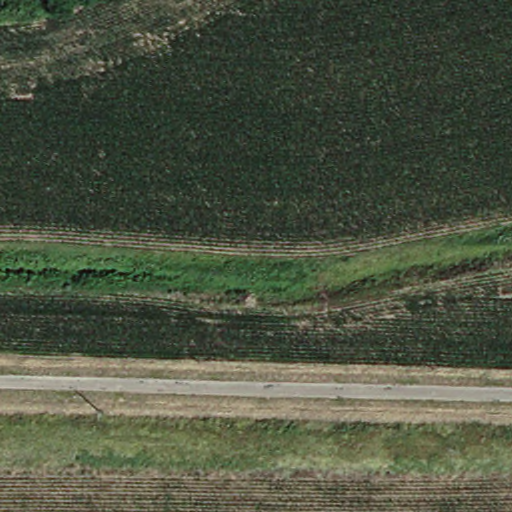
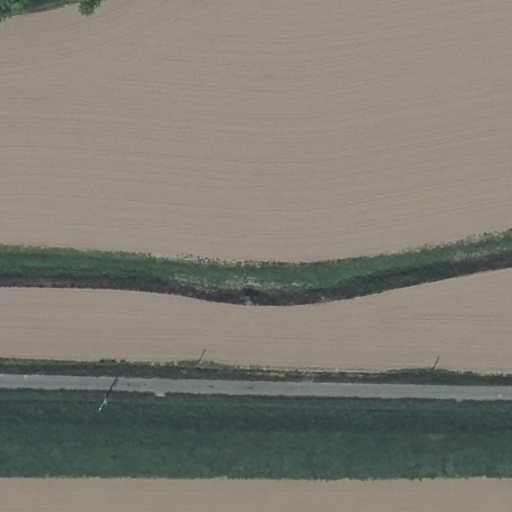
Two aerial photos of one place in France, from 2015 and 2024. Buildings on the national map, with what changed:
[]

